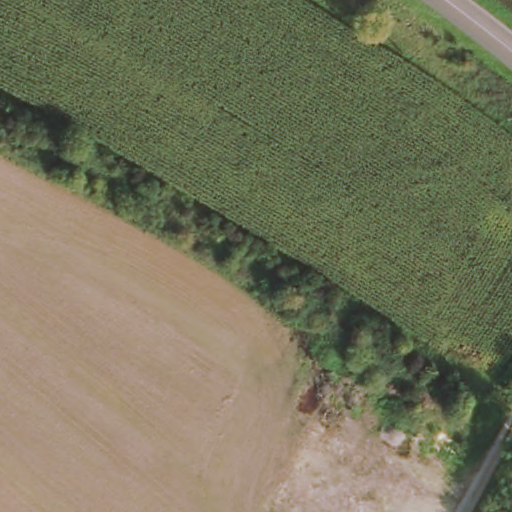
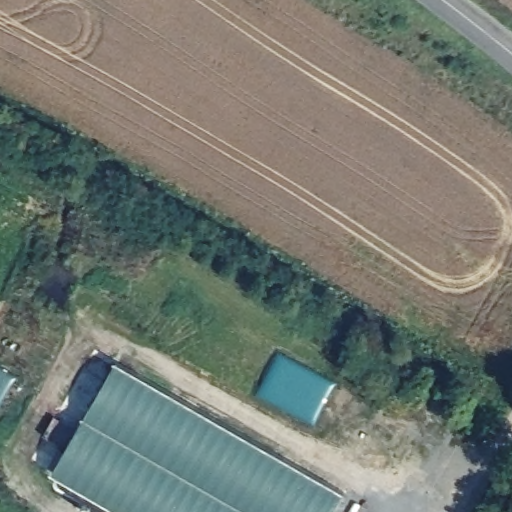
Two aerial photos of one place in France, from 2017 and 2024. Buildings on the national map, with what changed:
new [(52,473),(67,447),(75,426),(81,424),(117,362),(344,493),(333,512),(119,512),(52,473)]

